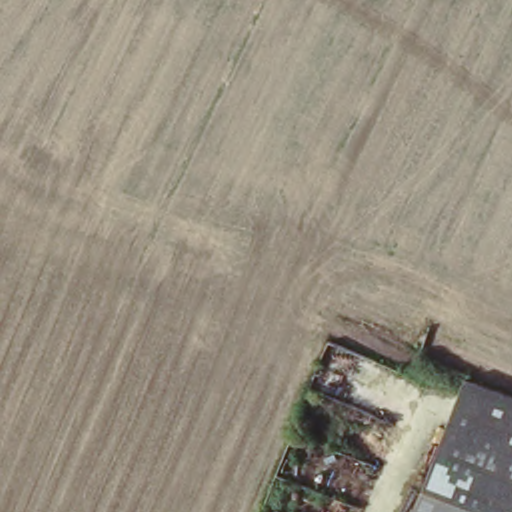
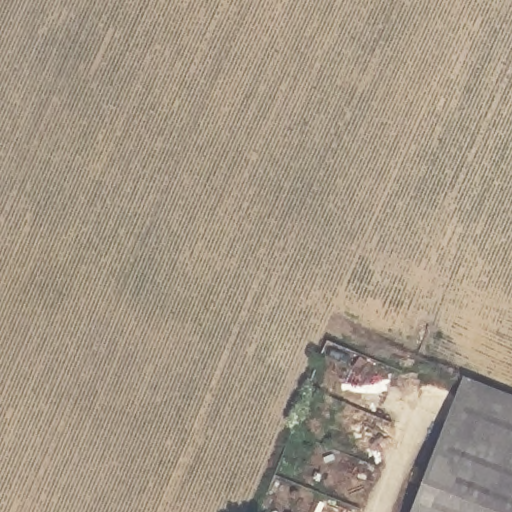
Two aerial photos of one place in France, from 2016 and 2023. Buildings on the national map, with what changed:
unchanged [(465,374),(512,392),(512,512),(413,512),(465,374)]

